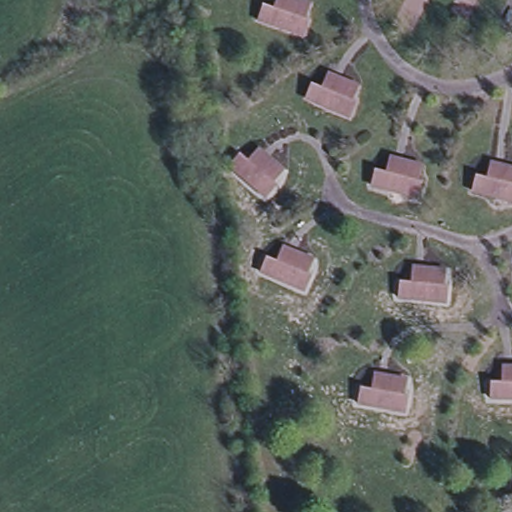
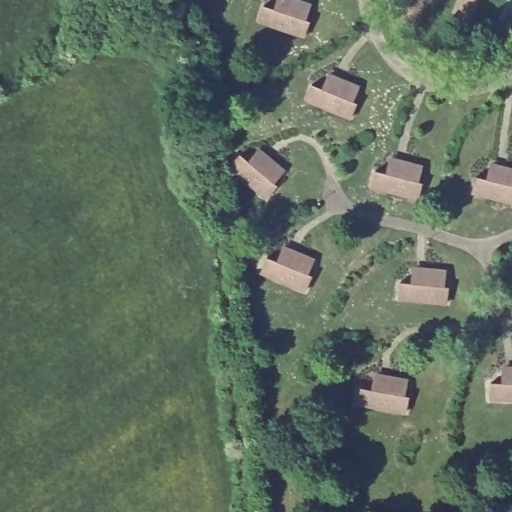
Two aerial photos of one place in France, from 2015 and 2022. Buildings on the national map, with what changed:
unchanged [(307,24),(310,25),(305,41),(258,26),(265,10),(274,14),(279,0),(284,0),(296,5),(312,10),(307,24)]
unchanged [(354,101),(358,102),(351,118),(305,99),(312,83),(322,87),(328,72),(345,80),(360,86),(354,101)]
unchanged [(275,182),(278,186),(267,198),(228,166),(240,152),(248,160),(259,149),(273,160),(285,171),(275,182)]
unchanged [(420,181),(424,183),(420,200),(372,187),(376,170),(387,173),(390,158),(408,162),(424,166),(420,181)]
unchanged [(477,180),(487,183),(490,170),(507,174),(512,175),(512,208),(472,197),(477,180)]
unchanged [(309,273),(312,275),(306,291),(260,273),(267,257),(277,261),(282,247),(299,254),(315,260),(309,273)]
unchanged [(445,291),(450,291),(448,308),(398,303),(400,286),(412,287),(413,272),(430,273),(447,276),(445,291)]
unchanged [(492,383),(502,383),(502,368),(512,368),(512,400),(492,400),(492,383)]
unchanged [(405,395),(410,395),(407,412),(358,403),(362,387),(372,389),(375,375),(392,377),(408,380),(405,395)]

